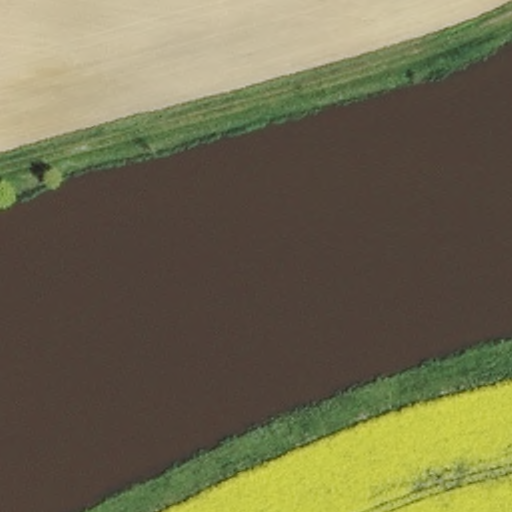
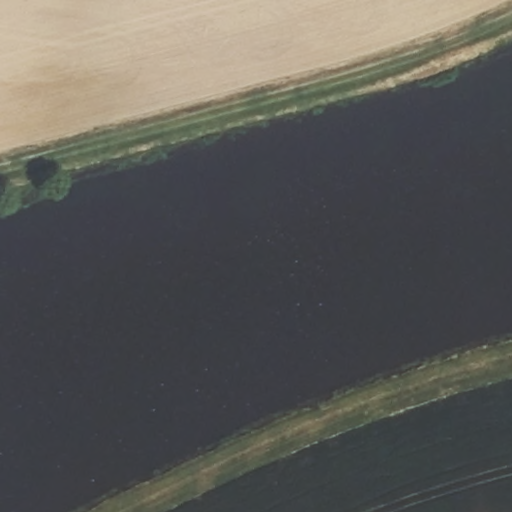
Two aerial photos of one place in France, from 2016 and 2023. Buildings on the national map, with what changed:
[]

